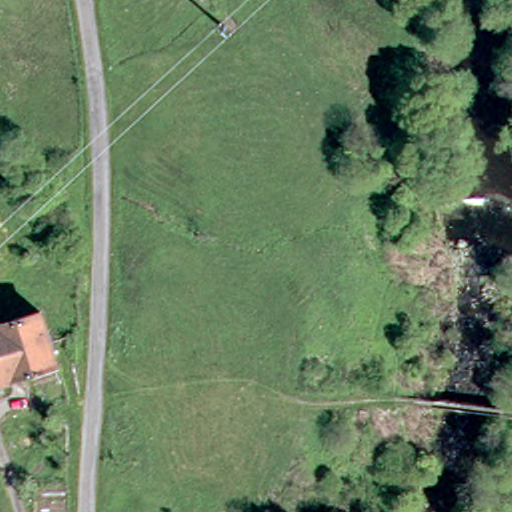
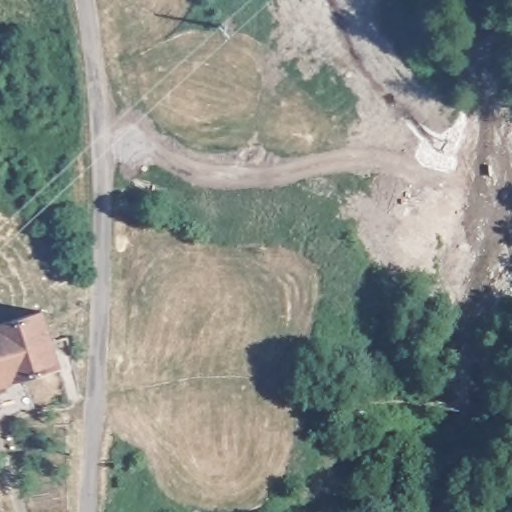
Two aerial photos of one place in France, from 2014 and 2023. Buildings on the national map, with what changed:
unchanged [(62,362),(0,381),(0,321),(45,307),(62,362)]

